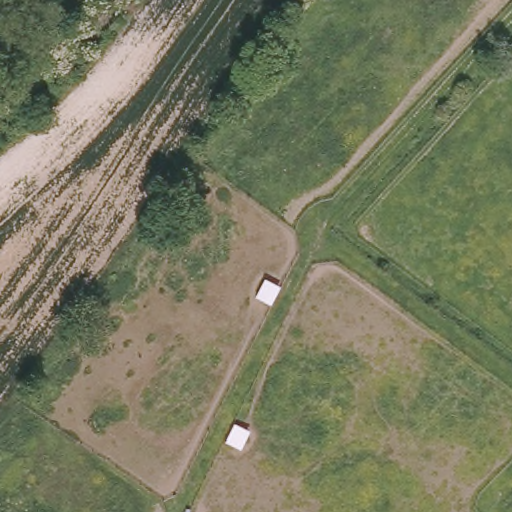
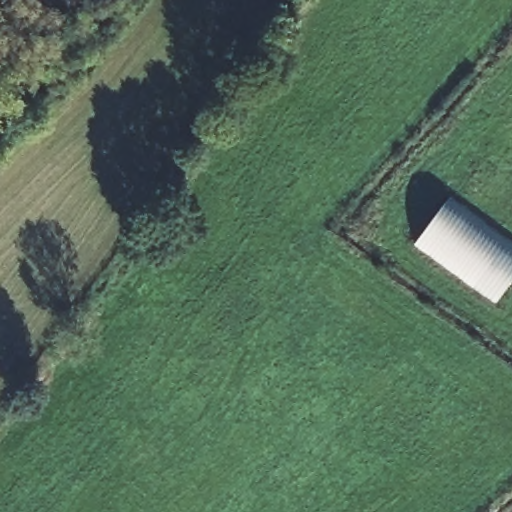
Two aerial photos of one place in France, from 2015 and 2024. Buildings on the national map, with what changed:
new [(455,191),(512,232),(512,282),(502,297),(420,237),(455,191)]

